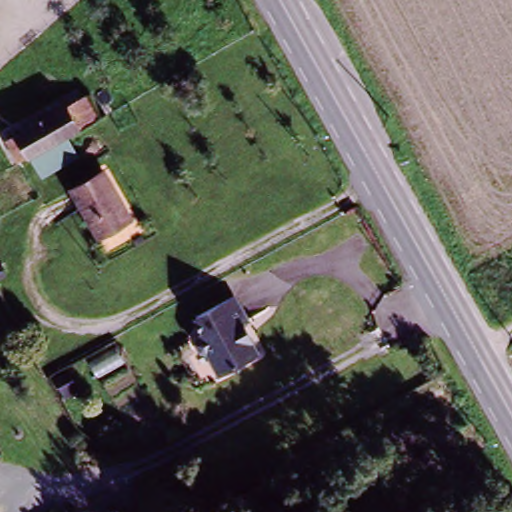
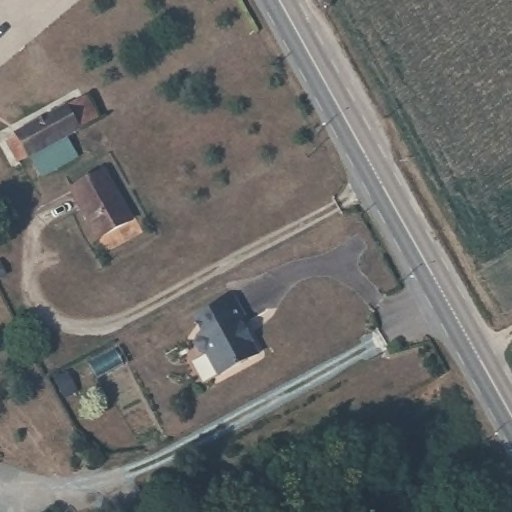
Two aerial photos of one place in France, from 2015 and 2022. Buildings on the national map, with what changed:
unchanged [(85,94),(97,119),(65,136),(68,159),(37,175),(12,134),(85,94)]
unchanged [(103,168),(132,220),(97,238),(70,186),(103,168)]
unchanged [(228,300),(240,326),(233,329),(237,338),(240,340),(248,358),(205,377),(195,354),(189,351),(185,343),(187,337),(194,334),(187,317),(228,300)]
unchanged [(46,381),(54,399),(43,405),(35,386),(46,381)]

